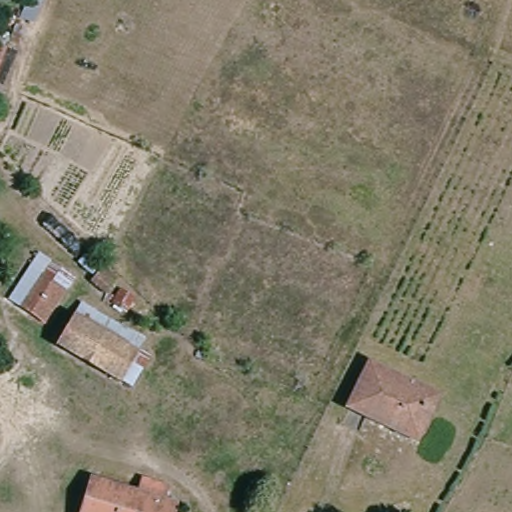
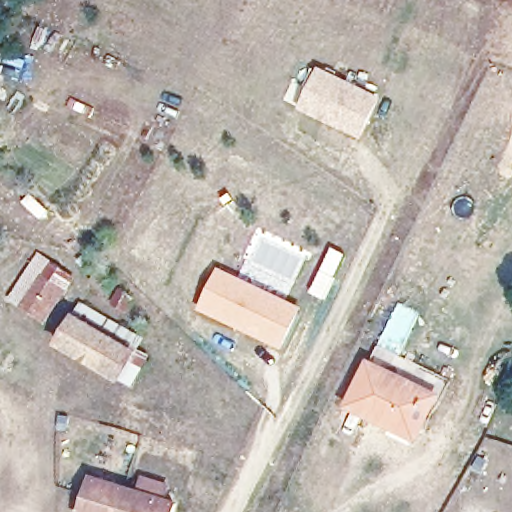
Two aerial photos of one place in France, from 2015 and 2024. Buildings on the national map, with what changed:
unchanged [(6,48),(0,62),(0,46),(6,48)]
new [(299,109),(317,69),(381,99),(360,139),(299,109)]
new [(331,246),(346,254),(325,300),(307,292),(331,246)]
unchanged [(3,300),(37,253),(74,279),(46,322),(3,300)]
new [(219,267),(302,307),(281,351),(197,310),(219,267)]
unchanged [(79,307),(137,345),(115,384),(57,346),(79,307)]
unchanged [(429,403),(414,442),(347,414),(362,371),(387,383),(429,403)]
unchanged [(82,476),(130,489),(136,476),(163,485),(159,502),(177,507),(175,512),(75,512),(82,476)]

